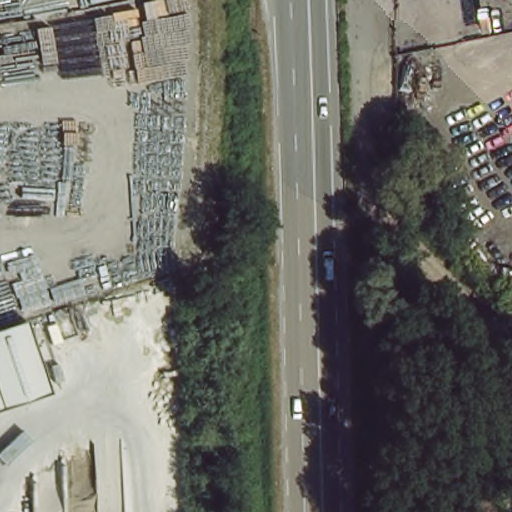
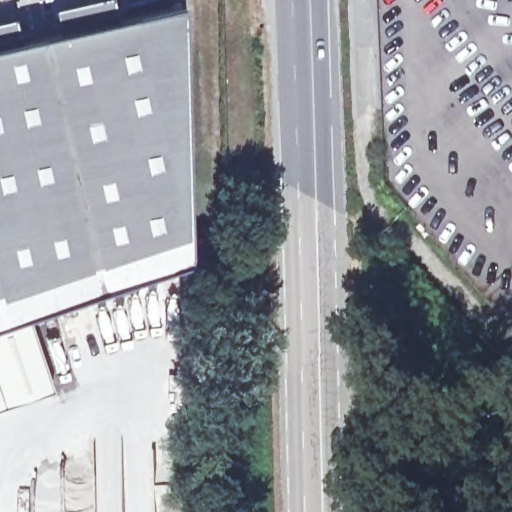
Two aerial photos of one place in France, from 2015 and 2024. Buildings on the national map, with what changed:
new [(16,45),(58,37),(53,10),(101,0),(111,0),(116,24),(176,10),(183,262),(31,318),(0,328),(0,23),(12,21),(16,45)]
unchanged [(56,393),(0,411),(0,328),(31,318),(56,393)]

